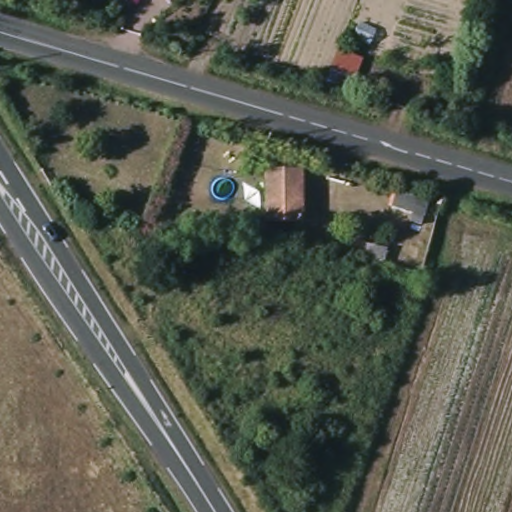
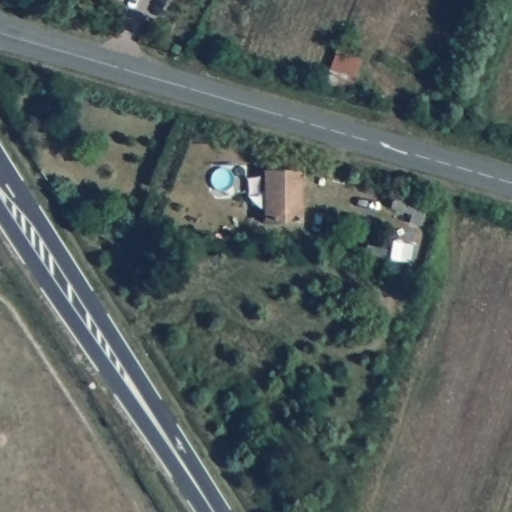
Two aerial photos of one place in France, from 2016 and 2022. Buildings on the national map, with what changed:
unchanged [(299,221),(265,220),(267,171),(300,172),(299,221)]
unchanged [(396,190),(426,199),(422,214),(391,205),(396,190)]

